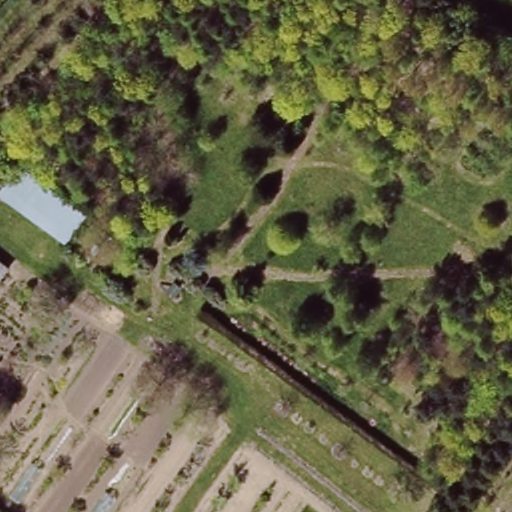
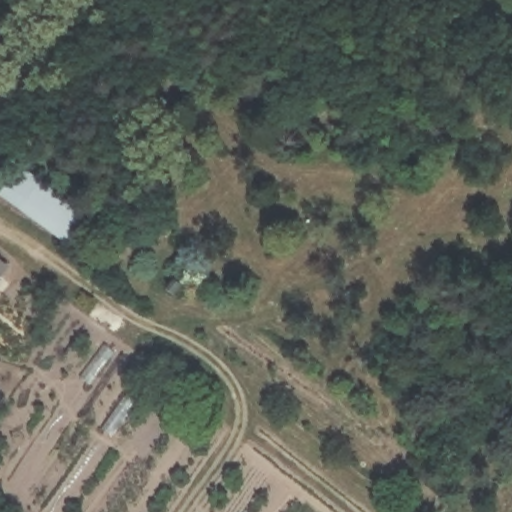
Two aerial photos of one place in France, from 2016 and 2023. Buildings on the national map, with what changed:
unchanged [(12,157),(88,211),(65,243),(0,195),(0,174),(12,157)]
unchanged [(7,260),(0,268),(0,254),(7,260)]

